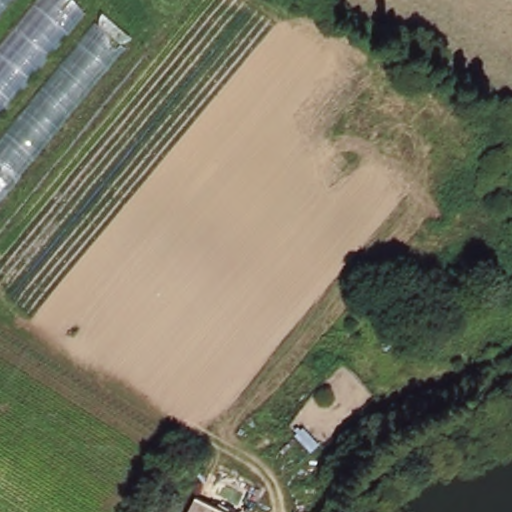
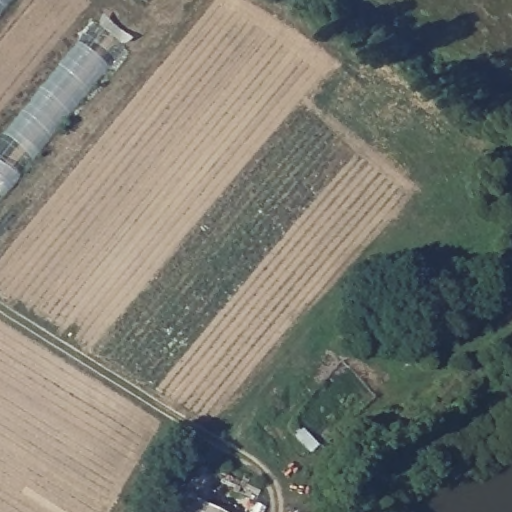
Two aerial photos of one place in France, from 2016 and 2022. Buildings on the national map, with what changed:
unchanged [(0,12),(0,0),(10,0),(0,12)]
demolished [(40,0),(84,0),(94,8),(0,121),(0,48),(40,0)]
unchanged [(104,17),(129,42),(0,199),(0,141),(104,17)]
unchanged [(189,512),(195,500),(216,512),(189,512)]

